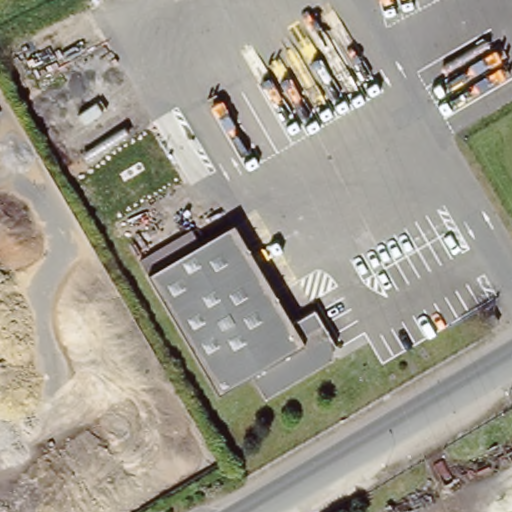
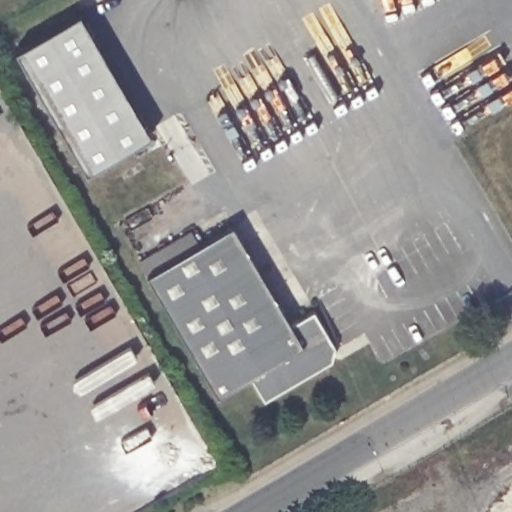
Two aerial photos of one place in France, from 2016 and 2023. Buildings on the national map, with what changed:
new [(86,169),(18,50),(81,14),(149,132),(86,169)]
unchanged [(236,222),(294,319),(316,306),(339,345),(334,358),(265,400),(251,377),(221,396),(150,274),(236,222)]
unchanged [(498,326),(487,332),(481,322),(493,316),(498,326)]

